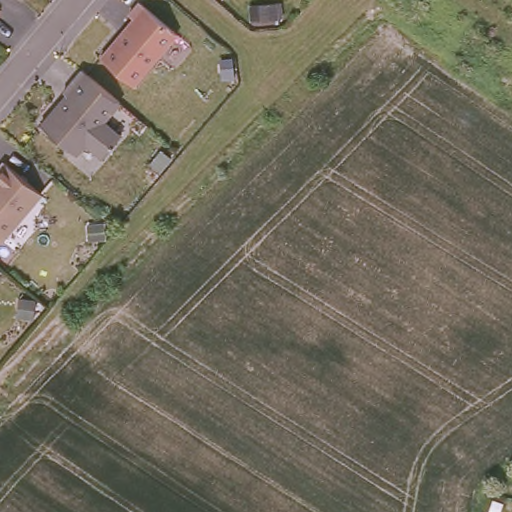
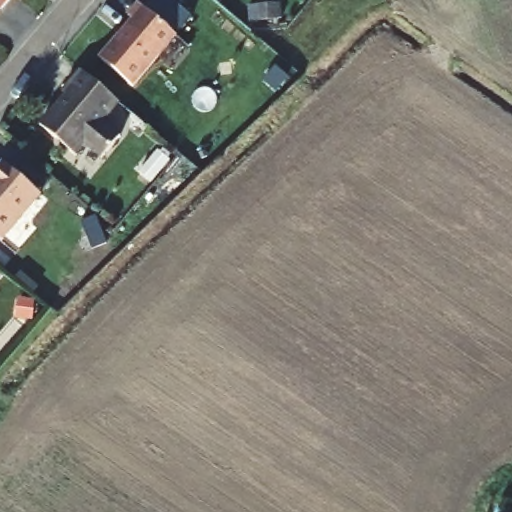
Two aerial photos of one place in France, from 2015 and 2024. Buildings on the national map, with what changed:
unchanged [(138,20),(133,16),(144,4),(181,35),(138,86),(105,59),(138,20)]
unchanged [(2,11),(0,13),(0,9),(2,11)]
unchanged [(124,103),(108,122),(126,137),(107,158),(90,144),(80,155),(45,126),(67,100),(70,102),(74,97),(68,92),(86,71),(124,103)]
unchanged [(44,196),(5,242),(0,237),(0,172),(7,164),(44,196)]

